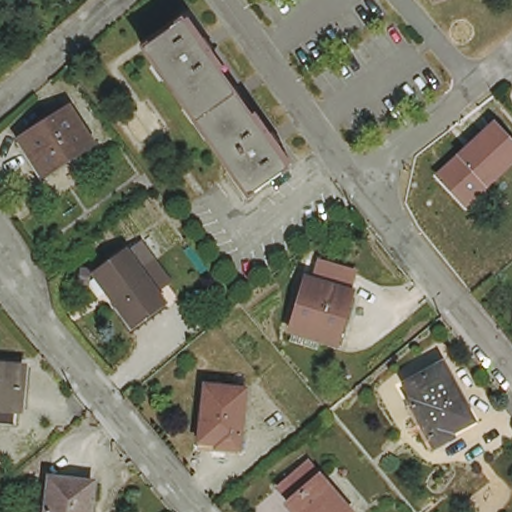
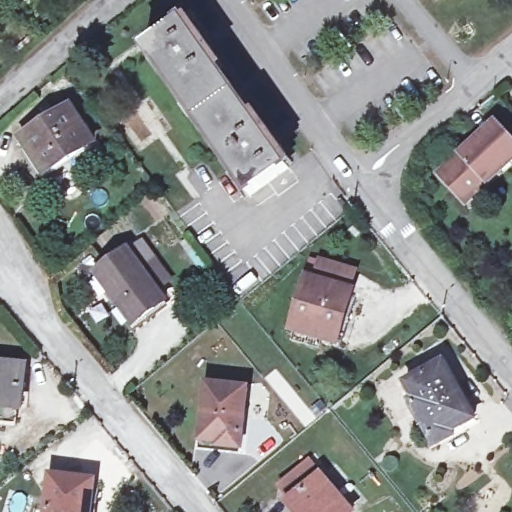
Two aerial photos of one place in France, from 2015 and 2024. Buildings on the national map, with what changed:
unchanged [(265,117),(286,146),(280,151),(288,164),(250,190),(143,44),(182,17),(191,29),(198,25),(217,52),(211,56),(258,122),(265,117)]
unchanged [(97,138),(48,171),(26,137),(75,105),(97,138)]
unchanged [(470,210),(435,179),(493,120),(512,139),(512,165),(470,210)]
unchanged [(170,293),(139,317),(100,265),(131,242),(170,293)]
unchanged [(357,282),(342,336),(297,322),(312,270),(357,282)]
unchanged [(26,400),(23,399),(22,415),(0,413),(0,355),(28,357),(26,400)]
unchanged [(477,420),(440,439),(437,435),(432,437),(411,397),(415,395),(406,377),(445,358),(477,420)]
unchanged [(250,381),(245,440),(200,437),(205,377),(250,381)]
unchanged [(300,512),(289,498),(291,497),(280,482),(303,462),(308,458),(320,472),(352,511),(350,512),(300,512)]
unchanged [(91,512),(48,512),(52,470),(95,474),(91,512)]

